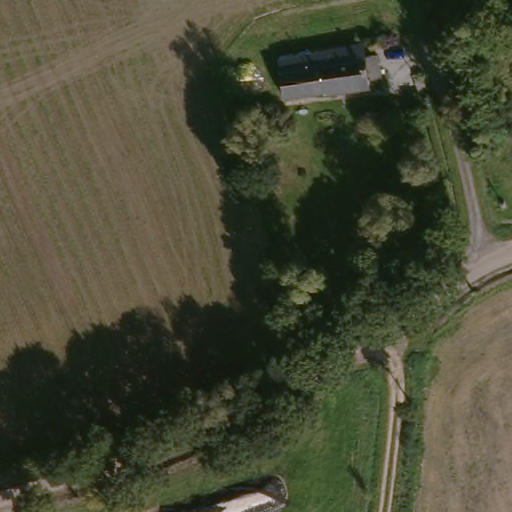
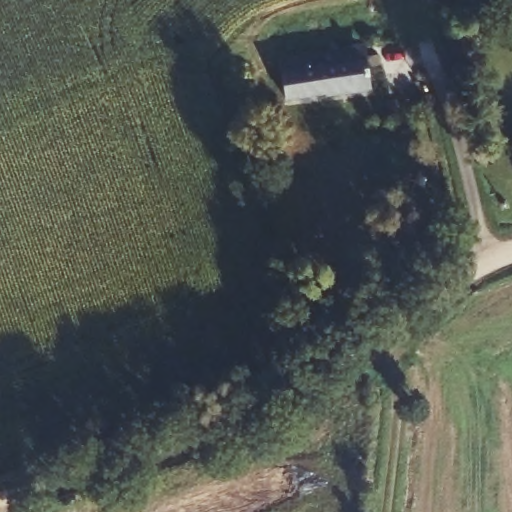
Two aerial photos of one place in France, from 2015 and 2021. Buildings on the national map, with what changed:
unchanged [(329,58),(326,45),(354,39),(359,51),(373,48),(378,69),(364,73),(366,81),(285,101),(282,77),(331,63),(329,58)]

